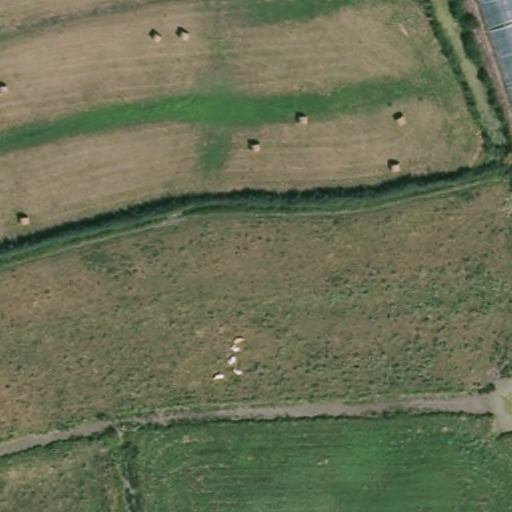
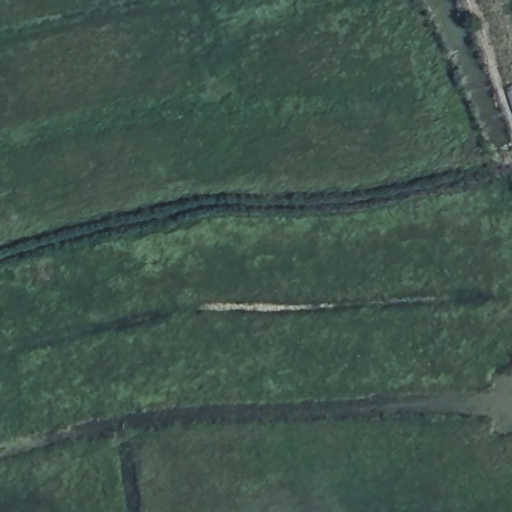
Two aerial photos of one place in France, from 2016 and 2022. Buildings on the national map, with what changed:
demolished [(512,104),(478,0),(512,0),(512,104)]

